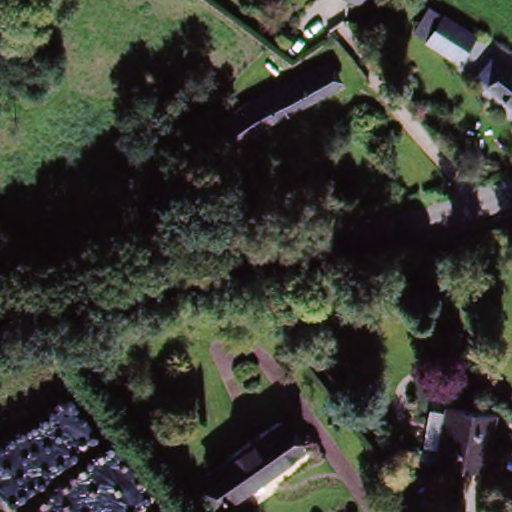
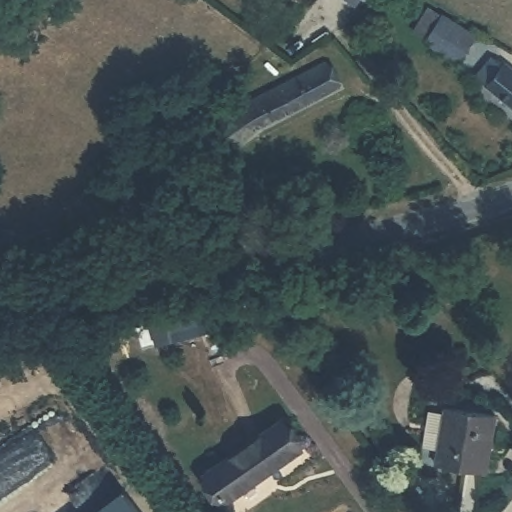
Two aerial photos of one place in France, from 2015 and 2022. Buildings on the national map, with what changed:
unchanged [(348,0),(366,0),(359,8),(348,0)]
unchanged [(372,0),(369,2),(366,0),(372,0)]
unchanged [(473,35),(457,58),(428,38),(444,15),(473,35)]
unchanged [(251,99),(328,63),(337,84),(271,116),(238,141),(225,122),(251,99)]
unchanged [(507,69),(509,64),(512,67),(512,102),(486,83),(500,65),(507,69)]
unchanged [(496,419),(487,476),(437,469),(438,454),(423,451),(429,415),(444,417),(445,412),(496,419)]
unchanged [(284,420),(304,448),(229,502),(211,474),(284,420)]
new [(122,486),(142,512),(88,512),(122,486)]

